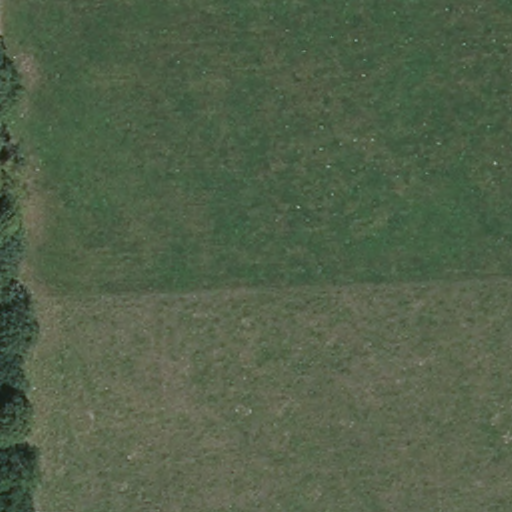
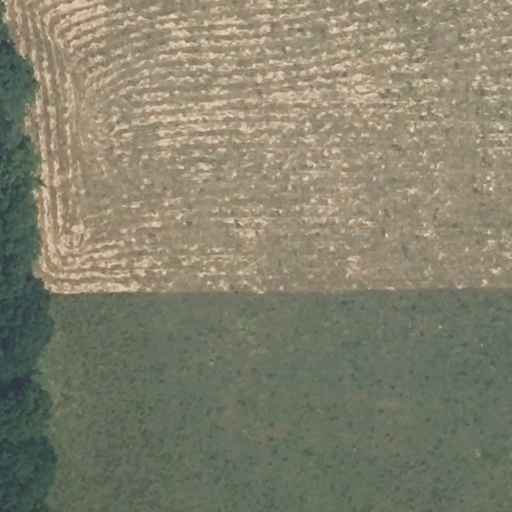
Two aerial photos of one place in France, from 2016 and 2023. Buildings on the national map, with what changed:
[]

